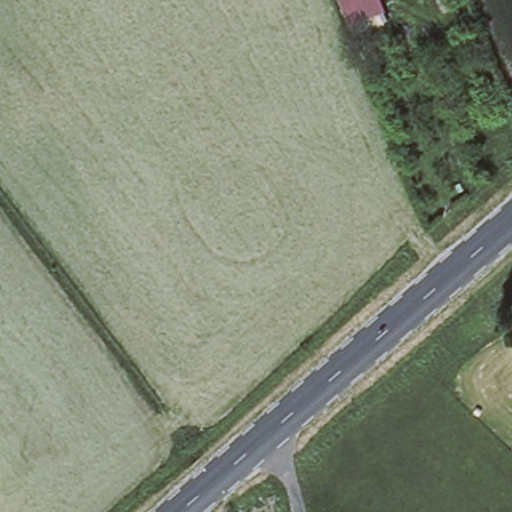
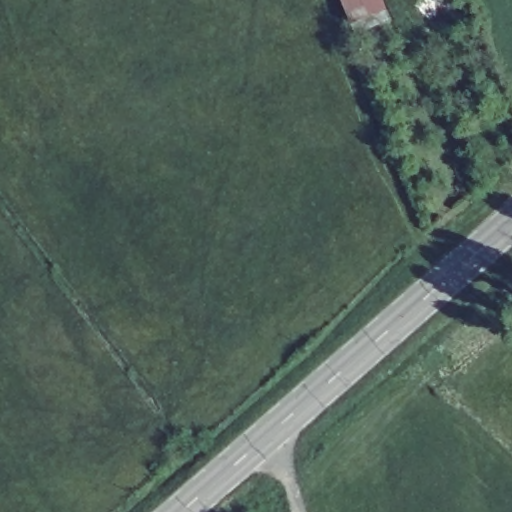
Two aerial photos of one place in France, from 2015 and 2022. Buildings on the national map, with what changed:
unchanged [(377,0),(382,12),(349,26),(338,0),(377,0)]

